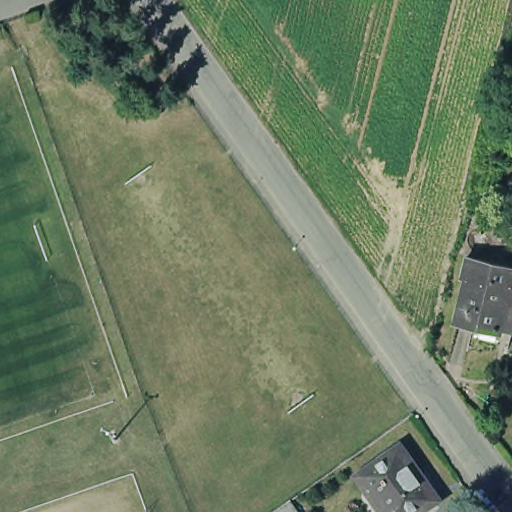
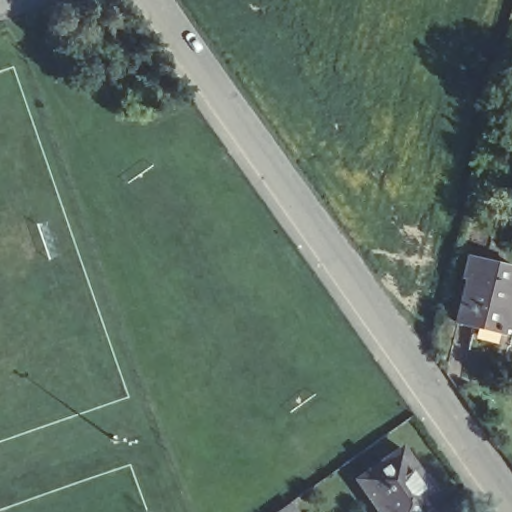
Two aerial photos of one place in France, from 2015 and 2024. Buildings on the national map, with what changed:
unchanged [(509,285),(499,328),(470,322),(454,318),(465,278),(459,277),(465,252),(512,263),(512,272),(509,285)]
unchanged [(512,286),(512,323),(507,343),(467,334),(470,322),(499,328),(509,285),(512,286)]
unchanged [(422,512),(375,512),(352,479),(396,447),(434,503),(422,512)]

